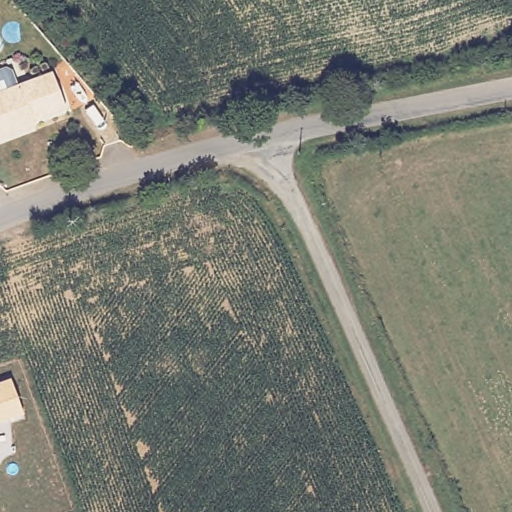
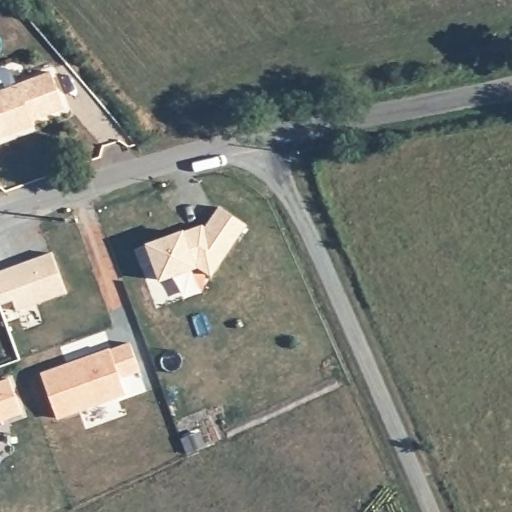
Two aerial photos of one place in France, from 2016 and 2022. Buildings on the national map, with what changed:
unchanged [(22,128),(22,130),(0,139),(0,93),(51,75),(64,112),(22,128)]
new [(211,275),(199,269),(158,282),(152,261),(141,266),(135,249),(146,244),(185,230),(202,225),(206,226),(219,206),(247,225),(211,275)]
new [(10,300),(0,303),(0,271),(52,251),(67,291),(14,310),(10,300)]
new [(121,378),(127,394),(57,418),(41,372),(110,347),(111,349),(131,342),(141,371),(121,378)]
unchanged [(23,415),(0,422),(0,381),(11,377),(23,415)]

